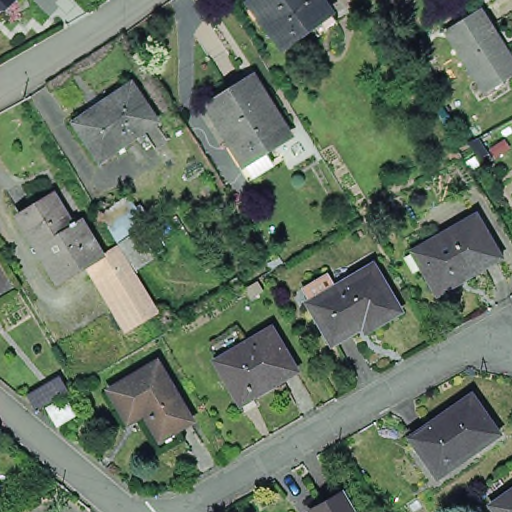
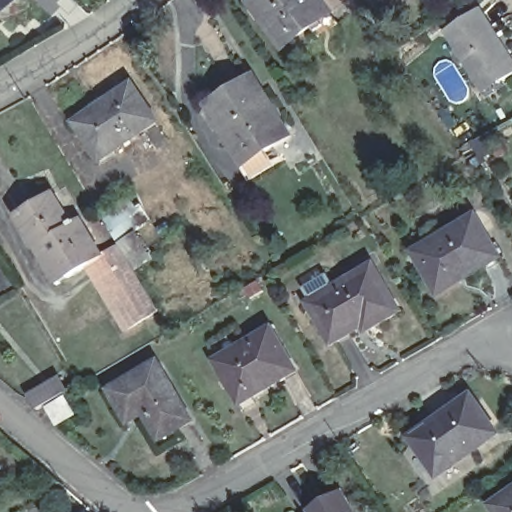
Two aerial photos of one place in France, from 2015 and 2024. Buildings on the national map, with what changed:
unchanged [(3,12),(0,9),(0,0),(15,0),(3,12)]
unchanged [(317,32),(313,25),(309,20),(281,41),(250,0),(322,0),(328,6),(336,17),(317,32)]
unchanged [(481,13),(512,63),(512,76),(484,94),(447,35),(481,13)]
unchanged [(250,74),(286,131),(246,157),(209,100),(250,74)]
unchanged [(100,149),(75,114),(131,75),(156,111),(100,149)]
unchanged [(70,277),(50,243),(41,248),(21,217),(57,195),(74,223),(78,221),(79,224),(84,221),(105,256),(93,264),(70,277)]
unchanged [(438,286),(427,266),(432,264),(422,247),(480,214),(503,254),(470,273),(468,269),(438,286)]
unchanged [(123,246),(124,245),(163,311),(131,330),(93,264),(105,256),(123,246)]
unchanged [(359,329),(356,324),(324,342),(301,301),(368,263),(394,309),(359,329)]
unchanged [(274,332),(299,374),(243,407),(218,365),(274,332)]
unchanged [(141,400),(126,409),(114,387),(162,360),(196,418),(163,437),(141,400)]
unchanged [(33,395),(62,380),(69,394),(41,410),(33,395)]
unchanged [(441,475),(417,440),(478,397),(506,436),(477,456),(474,452),(441,475)]
unchanged [(78,416),(60,425),(51,409),(68,400),(78,416)]
unchanged [(314,503),(346,485),(361,512),(315,512),(318,510),(314,503)]
unchanged [(495,512),(492,507),(512,493),(512,512),(495,512)]

